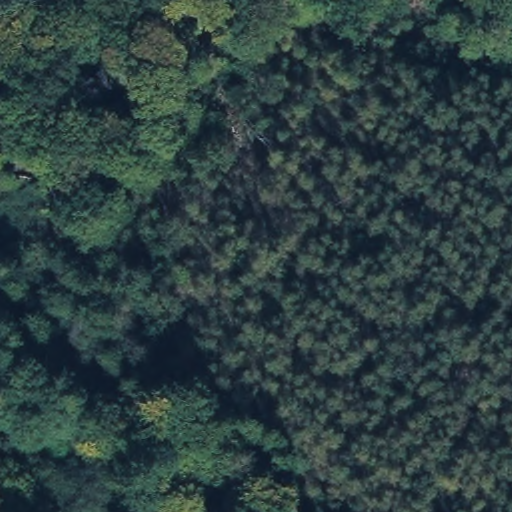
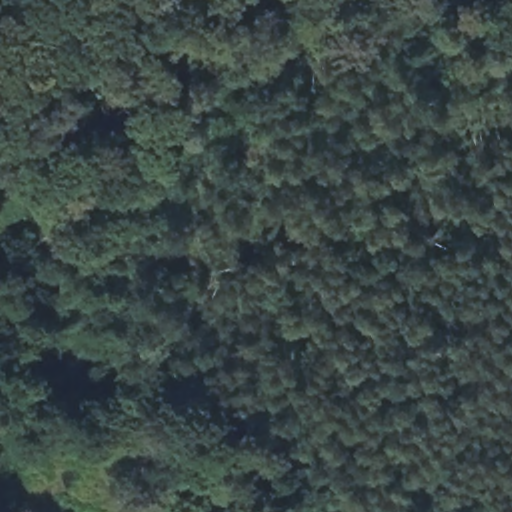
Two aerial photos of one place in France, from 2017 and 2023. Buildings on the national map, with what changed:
unchanged [(199,501),(206,512),(180,512),(199,501)]

